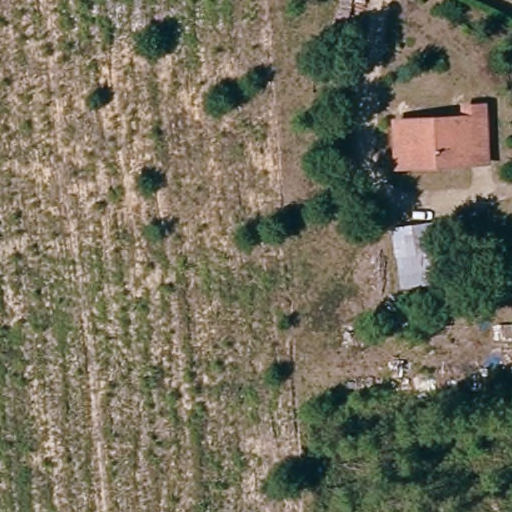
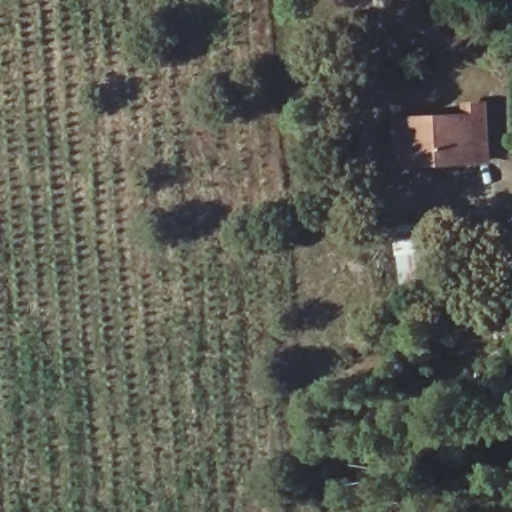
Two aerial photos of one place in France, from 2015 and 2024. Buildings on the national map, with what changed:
unchanged [(442,164),(409,164),(409,121),(472,120),(472,109),(492,108),(493,121),(493,164),(442,164)]
unchanged [(406,290),(397,228),(440,223),(450,283),(406,290)]

